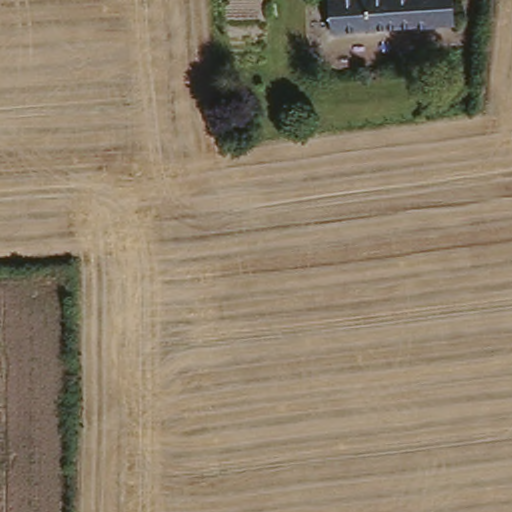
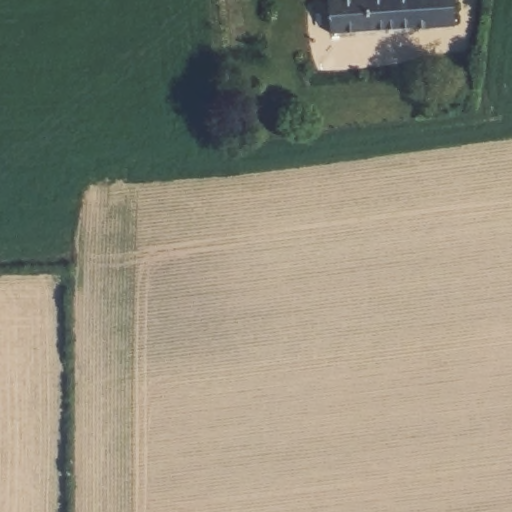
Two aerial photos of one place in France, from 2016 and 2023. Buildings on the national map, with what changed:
unchanged [(332,0),(453,0),(453,25),(334,33),(332,0)]

